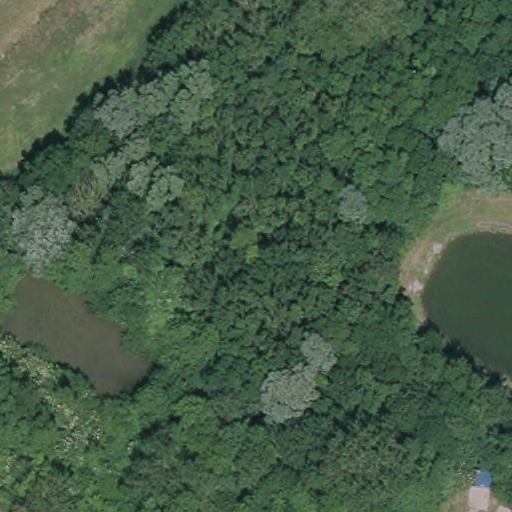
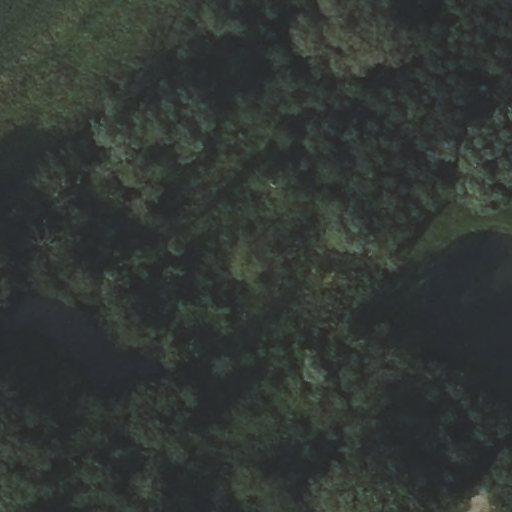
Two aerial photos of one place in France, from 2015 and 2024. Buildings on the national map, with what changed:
[]

